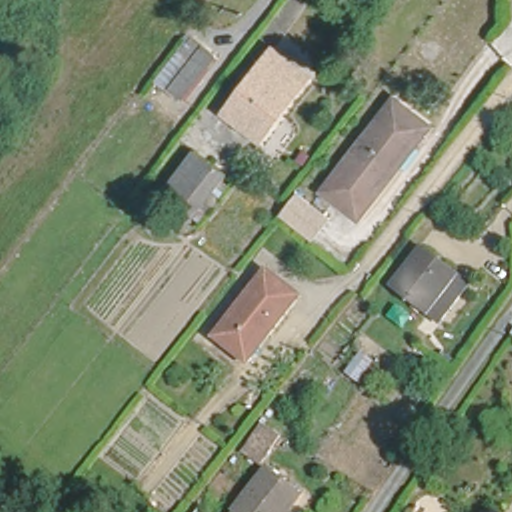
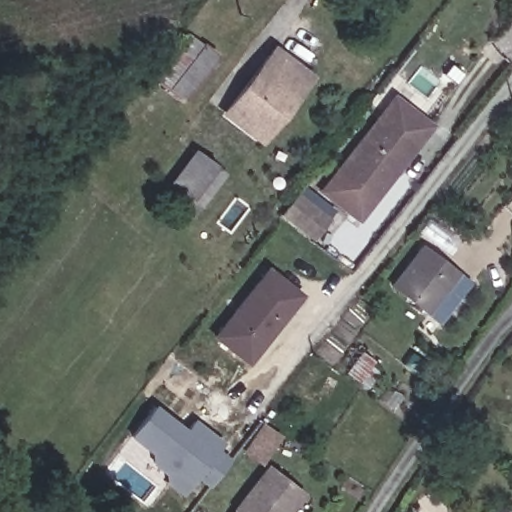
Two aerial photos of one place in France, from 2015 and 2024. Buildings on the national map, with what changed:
unchanged [(176,99),(148,80),(185,28),(217,48),(176,99)]
unchanged [(252,131),(222,107),(269,44),(308,72),(279,111),(259,137),(252,131)]
unchanged [(431,119),(353,215),(342,206),(314,243),(288,223),(390,86),(431,119)]
unchanged [(165,195),(175,182),(163,173),(188,140),(221,165),(186,210),(165,195)]
unchanged [(388,279),(420,237),(457,268),(425,308),(388,279)]
unchanged [(263,324),(242,351),(215,330),(266,264),(300,289),(270,329),(263,324)]
new [(229,459),(207,488),(195,479),(184,494),(169,483),(151,454),(130,438),(155,405),(186,430),(194,419),(224,442),(218,450),(229,459)]
unchanged [(264,463),(301,490),(284,512),(241,512),(234,507),(232,505),(264,463)]
unchanged [(241,512),(230,512),(234,507),(241,512)]

